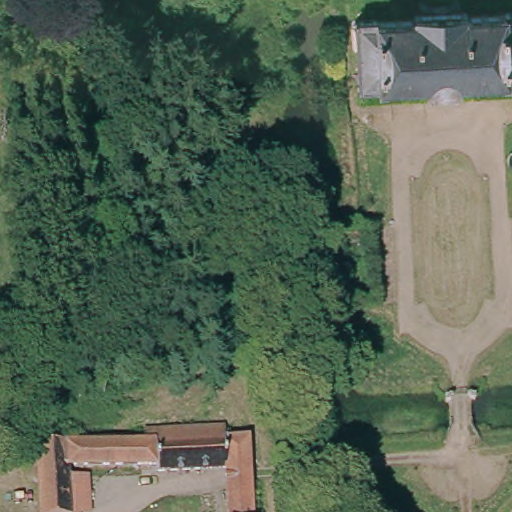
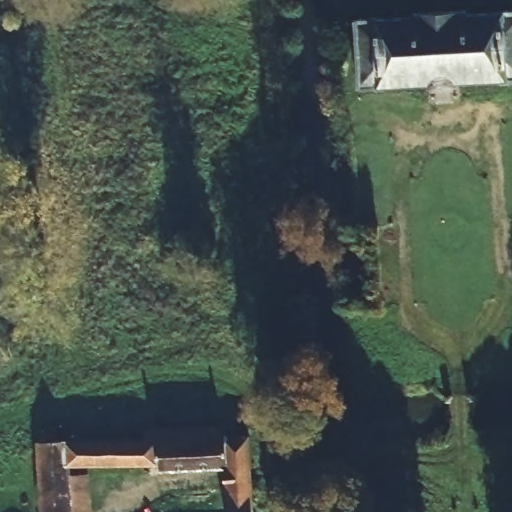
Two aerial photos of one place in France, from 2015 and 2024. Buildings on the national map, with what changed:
unchanged [(406,21),(414,17),(414,13),(459,10),(459,15),(465,18),(512,15),(512,79),(460,82),(460,88),(427,90),(427,84),(360,88),(357,24),(406,21)]
unchanged [(145,441),(145,431),(225,427),(225,440),(230,440),(247,439),(247,441),(249,470),(249,484),(250,512),(228,512),(226,474),(160,477),(159,467),(66,466),(67,477),(87,476),(88,512),(38,512),(34,446),(144,441),(145,441)]

